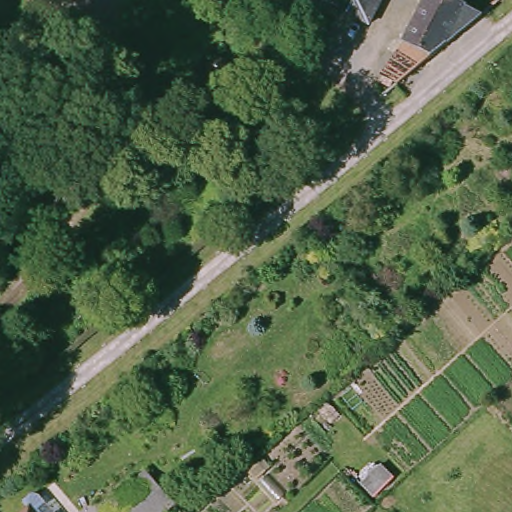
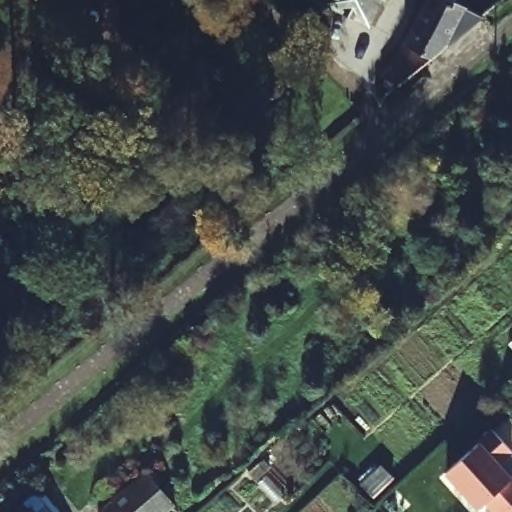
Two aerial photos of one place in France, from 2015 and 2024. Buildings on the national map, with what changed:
unchanged [(368,24),(325,3),(326,0),(381,0),(368,24)]
unchanged [(399,75),(393,79),(389,77),(386,82),(378,78),(381,73),(376,70),(401,34),(418,2),(419,0),(460,0),(478,10),(399,75)]
unchanged [(228,62),(230,72),(220,80),(210,75),(208,64),(217,57),(228,62)]
new [(478,508),(445,473),(482,441),(494,429),(512,449),(512,455),(502,464),(512,474),(512,511),(511,512),(493,512),(485,502),(478,508)]
unchanged [(176,504),(168,512),(100,512),(99,511),(145,470),(166,494),(176,504)]
unchanged [(29,512),(31,510),(34,512),(29,512)]

